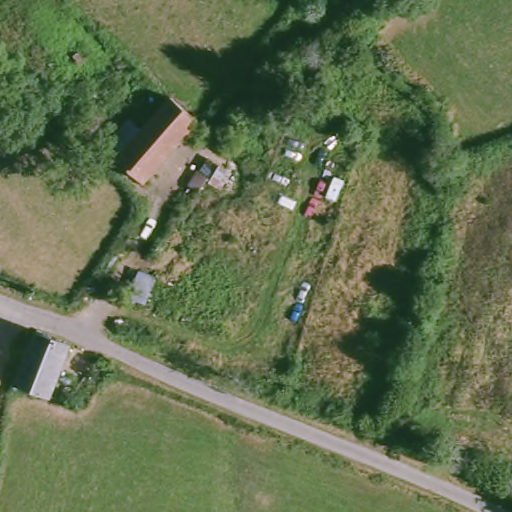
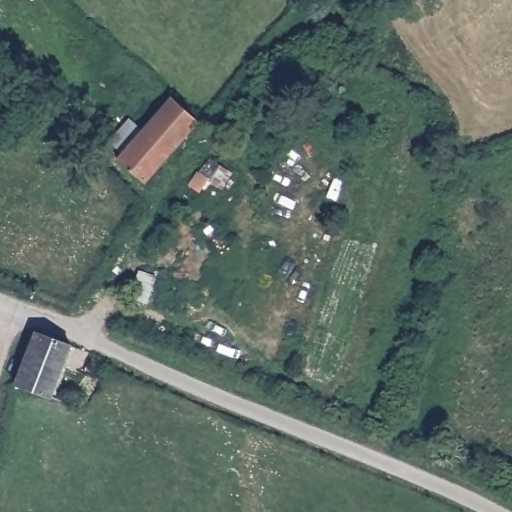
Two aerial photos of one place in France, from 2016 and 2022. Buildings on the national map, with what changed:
unchanged [(150,182),(123,160),(175,98),(201,120),(150,182)]
unchanged [(220,165),(200,191),(191,186),(211,160),(220,165)]
unchanged [(37,338),(70,349),(51,403),(15,389),(37,338)]

